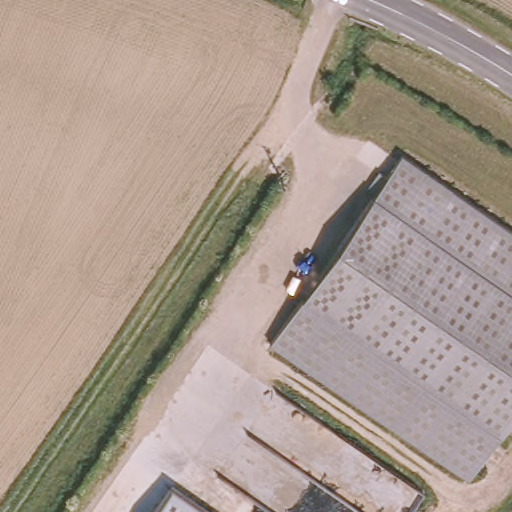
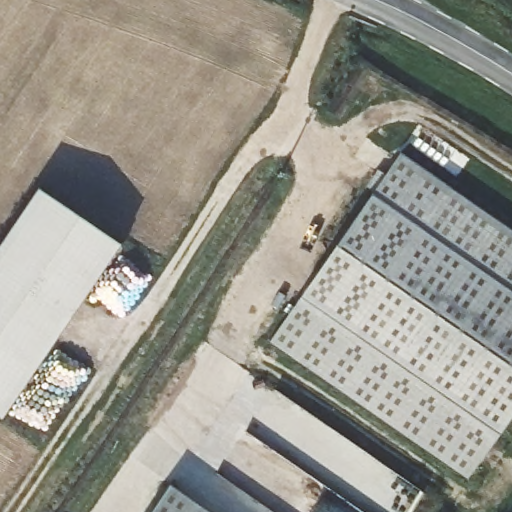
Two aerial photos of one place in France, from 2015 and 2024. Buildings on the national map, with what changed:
unchanged [(512,228),(512,415),(502,431),(468,477),(270,344),(302,297),(372,192),(402,152),(512,228)]
new [(11,398),(0,414),(0,245),(39,187),(121,244),(15,402),(11,398)]
unchanged [(212,512),(151,512),(171,483),(212,512)]

